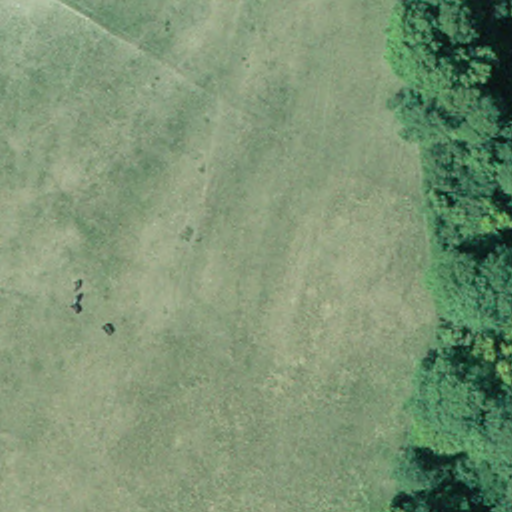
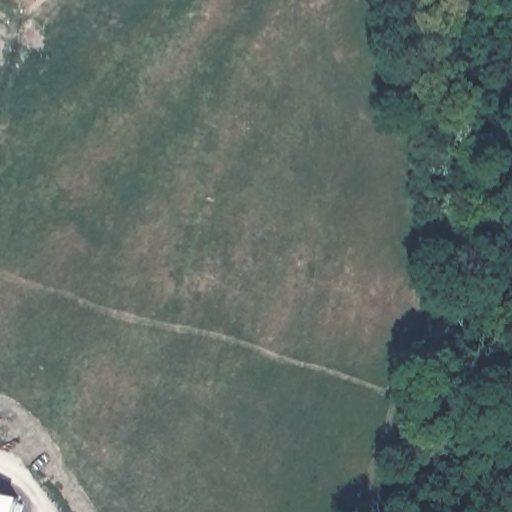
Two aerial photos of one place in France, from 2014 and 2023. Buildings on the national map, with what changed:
new [(18,512),(0,512),(0,487),(23,494),(18,512)]

